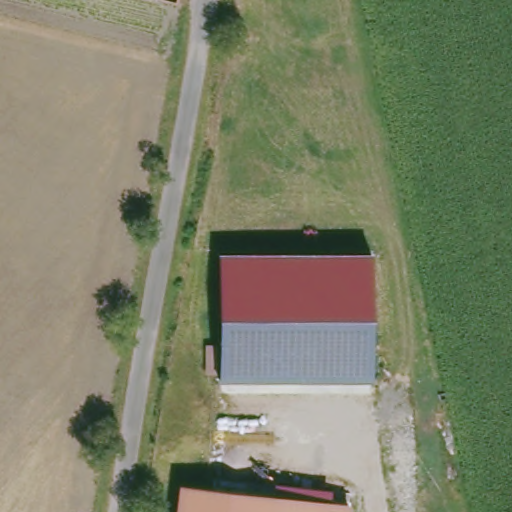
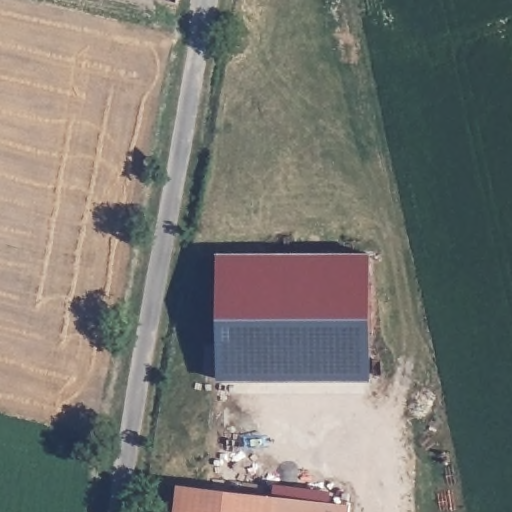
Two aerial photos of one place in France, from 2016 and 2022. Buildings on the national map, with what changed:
unchanged [(219,378),(219,251),(371,252),(372,378),(219,378)]
unchanged [(185,480),(353,506),(351,512),(179,512),(185,480)]

